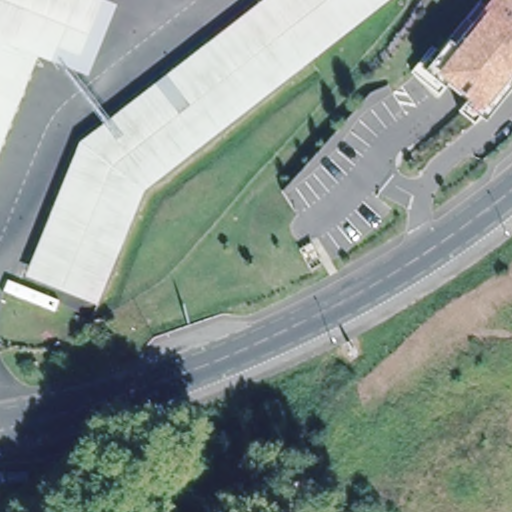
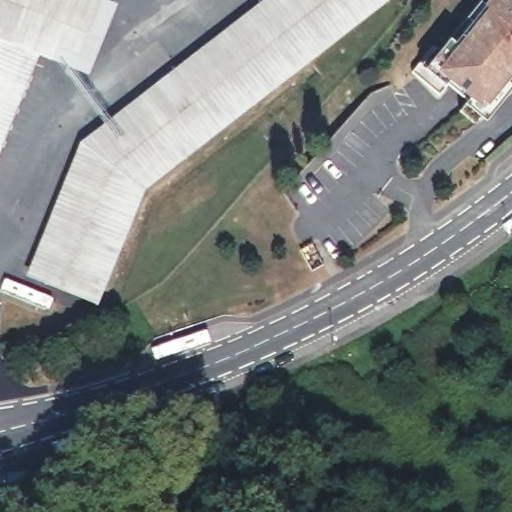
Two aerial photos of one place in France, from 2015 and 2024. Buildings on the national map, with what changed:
unchanged [(0,0),(102,0),(106,2),(76,72),(39,56),(0,39),(0,0)]
unchanged [(70,138),(259,0),(389,0),(132,188),(86,300),(15,270),(70,138)]
unchanged [(411,71),(432,45),(439,50),(480,0),(512,0),(512,77),(475,123),(459,110),(468,99),(448,83),(439,94),(411,71)]
unchanged [(0,39),(39,56),(0,148),(0,39)]

